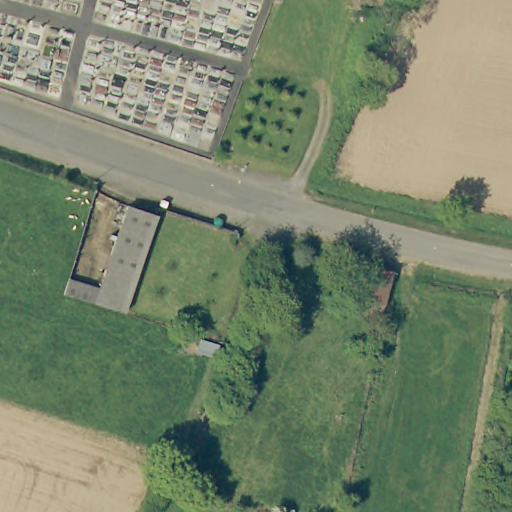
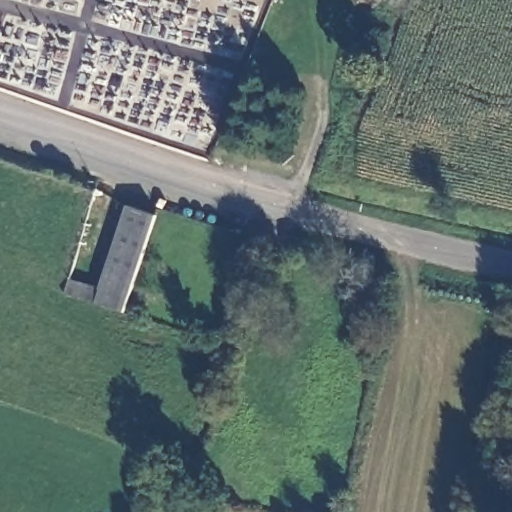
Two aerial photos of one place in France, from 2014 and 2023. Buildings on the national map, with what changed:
unchanged [(97,290),(127,209),(155,219),(120,314),(64,294),(68,280),(97,290)]
unchanged [(384,304),(356,298),(363,266),(390,271),(384,304)]

